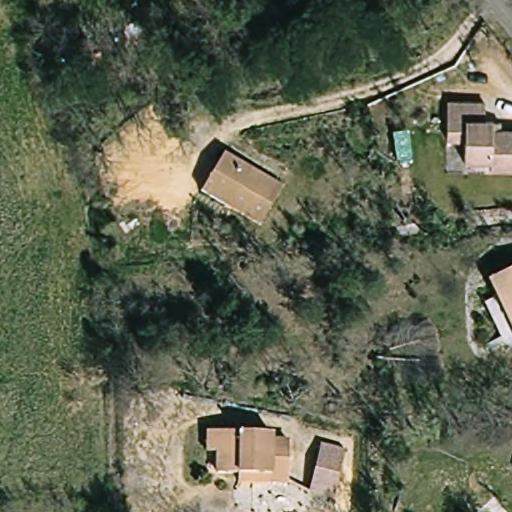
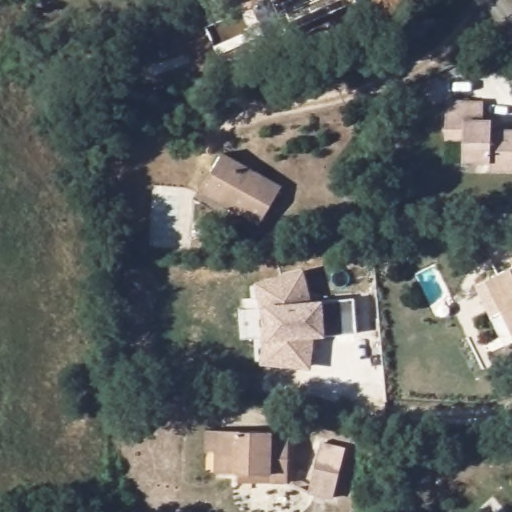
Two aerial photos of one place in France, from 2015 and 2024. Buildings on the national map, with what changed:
unchanged [(501,164),(476,162),(477,151),(459,150),(462,109),(483,111),(483,117),(500,119),(506,119),(506,126),(512,127),(512,174),(501,174),(501,164)]
unchanged [(223,209),(196,191),(224,151),(280,189),(260,217),(252,229),(223,209)]
new [(153,227),(151,241),(135,239),(137,225),(153,227)]
unchanged [(512,346),(511,346),(485,281),(512,269),(512,346)]
new [(356,334),(325,337),(318,338),(310,371),(259,365),(266,343),(263,306),(254,284),(304,270),(315,301),(323,301),(353,298),(356,334)]
unchanged [(210,432),(266,430),(266,440),(288,440),(289,484),(267,484),(267,473),(210,474),(210,432)]
new [(345,450),(332,501),(307,495),(321,444),(345,450)]

